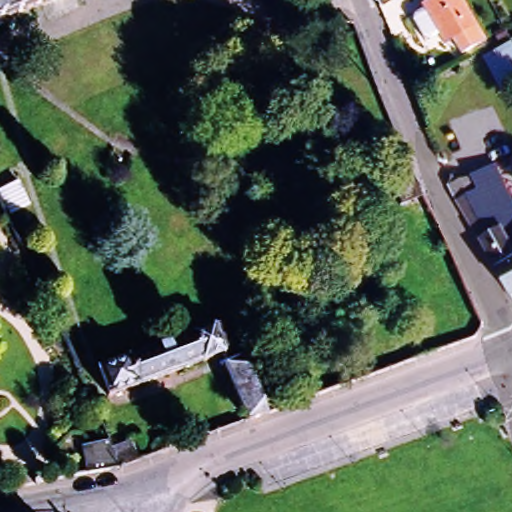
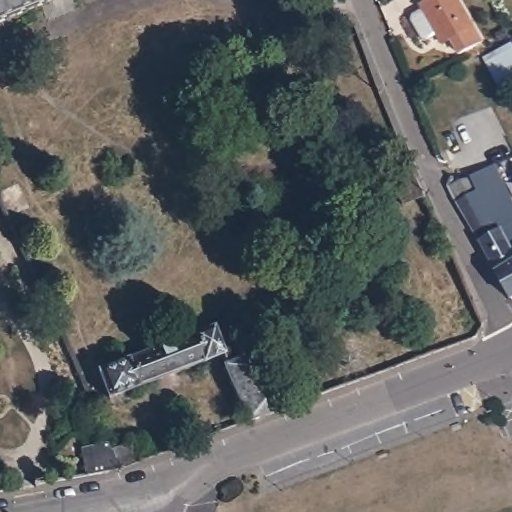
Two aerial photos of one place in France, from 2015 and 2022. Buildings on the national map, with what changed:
unchanged [(0,24),(0,0),(57,0),(0,24)]
unchanged [(482,38),(459,52),(449,37),(443,41),(419,2),(422,0),(459,0),(482,38)]
unchanged [(507,63),(504,59),(511,55),(510,52),(512,51),(512,95),(500,101),(486,74),(507,63)]
unchanged [(474,237),(447,189),(492,167),(512,207),(512,302),(474,237)]
unchanged [(18,183),(29,209),(6,219),(3,211),(0,205),(0,190),(18,183)]
unchanged [(231,330),(251,380),(264,415),(244,422),(221,366),(224,365),(220,354),(108,398),(96,372),(98,372),(139,355),(179,340),(188,336),(193,335),(227,321),(231,330)]
unchanged [(129,442),(138,461),(133,463),(118,468),(110,452),(109,450),(129,442)]

